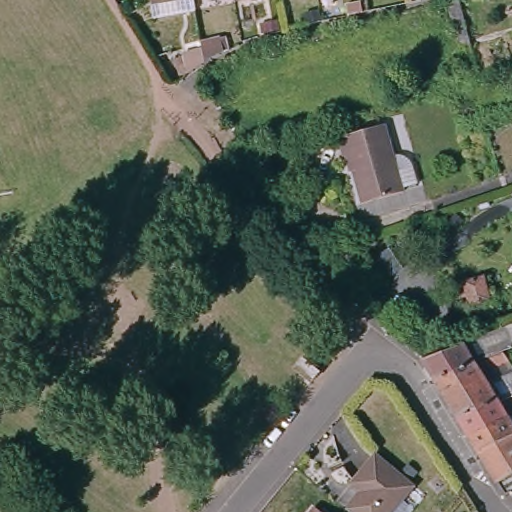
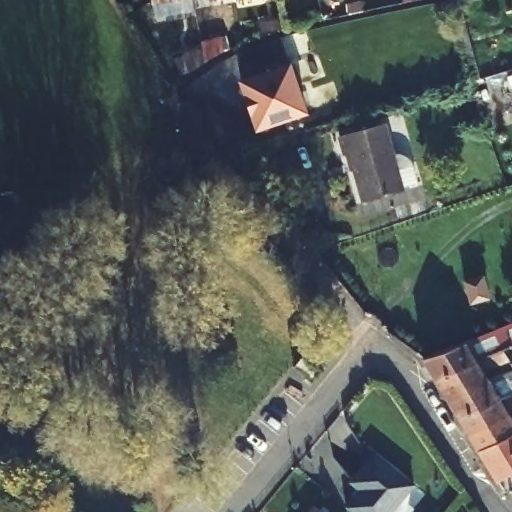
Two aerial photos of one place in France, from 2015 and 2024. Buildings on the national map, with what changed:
unchanged [(147,2),(147,0),(162,0),(147,2)]
unchanged [(446,2),(455,1),(477,79),(468,82),(446,2)]
unchanged [(347,15),(345,4),(357,2),(359,12),(347,15)]
unchanged [(180,56),(197,52),(197,45),(217,42),(218,49),(199,60),(182,72),(180,56)]
new [(309,115),(256,131),(238,80),(292,63),(309,115)]
unchanged [(405,189),(366,202),(351,154),(347,156),(340,136),(385,122),(405,189)]
unchanged [(492,305),(468,312),(457,277),(484,272),(492,305)]
unchanged [(422,357),(464,341),(507,324),(512,336),(512,346),(500,350),(437,380),(434,382),(420,360),(419,358),(422,357)]
unchanged [(437,380),(500,350),(506,360),(482,372),(487,382),(450,401),(447,402),(434,382),(437,380)]
unchanged [(309,382),(306,380),(290,367),(300,356),(315,367),(319,370),(309,382)]
unchanged [(450,401),(487,382),(512,371),(512,393),(510,393),(460,418),(457,420),(447,402),(450,401)]
unchanged [(457,420),(460,418),(510,393),(512,396),(512,432),(480,448),(477,450),(469,437),(466,433),(457,420)]
unchanged [(477,450),(480,448),(512,432),(512,470),(495,481),(477,450)]
unchanged [(354,473),(377,443),(417,476),(389,512),(367,512),(350,498),(364,481),(354,473)]
unchanged [(310,512),(312,509),(316,512),(310,512)]

